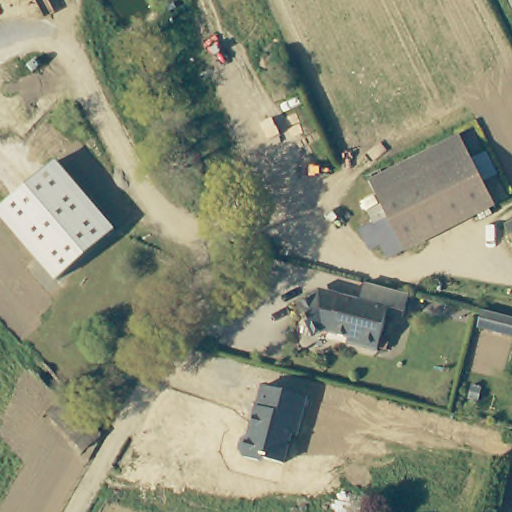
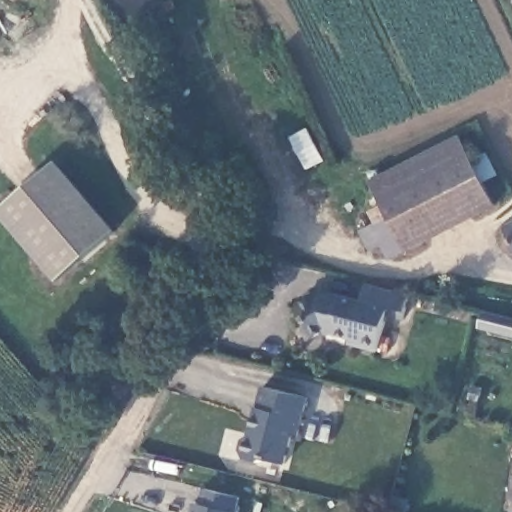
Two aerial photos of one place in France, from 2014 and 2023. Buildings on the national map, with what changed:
unchanged [(491,201),(403,247),(371,185),(459,140),(491,201)]
unchanged [(57,280),(0,213),(0,209),(55,161),(114,230),(57,280)]
unchanged [(512,230),(512,236),(509,231),(512,230)]
unchanged [(406,297),(411,298),(404,319),(394,315),(394,316),(382,352),(381,352),(362,345),(360,342),(333,333),(330,332),(319,338),(306,306),(323,299),(325,302),(330,300),(332,295),(345,298),(363,303),(370,285),(406,297)]
unchanged [(298,435),(292,435),(285,468),(243,458),(238,448),(241,440),(248,435),(262,388),(306,397),(298,435)]
new [(189,512),(191,501),(200,502),(203,488),(239,497),(236,512),(189,512)]

